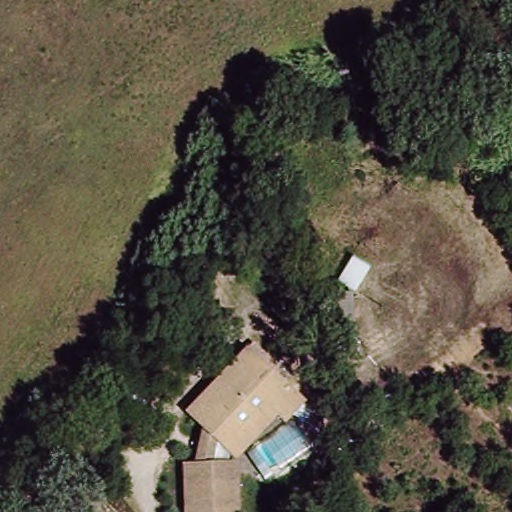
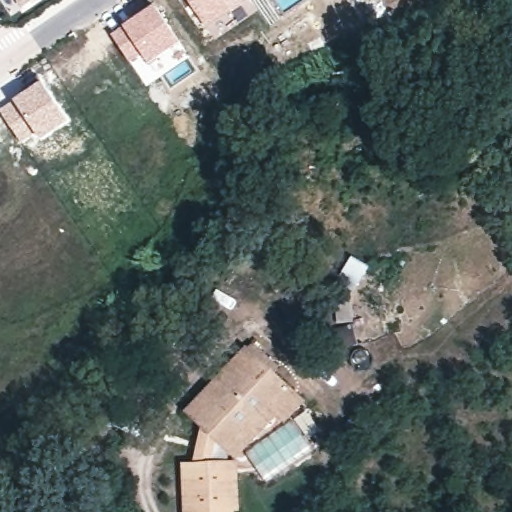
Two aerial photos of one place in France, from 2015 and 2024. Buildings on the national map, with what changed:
new [(16,0),(33,0),(21,8),(16,0)]
new [(187,0),(245,0),(206,28),(187,0)]
new [(155,4),(180,41),(147,63),(142,55),(131,63),(111,34),(123,25),(155,4)]
new [(69,120),(40,139),(35,133),(21,142),(0,111),(0,109),(42,80),(69,120)]
unchanged [(375,261),(354,292),(334,278),(351,251),(375,261)]
unchanged [(236,510),(229,510),(229,512),(183,512),(184,463),(195,464),(198,417),(189,408),(249,351),(286,389),(301,405),(283,421),(276,413),(235,455),(236,510)]

